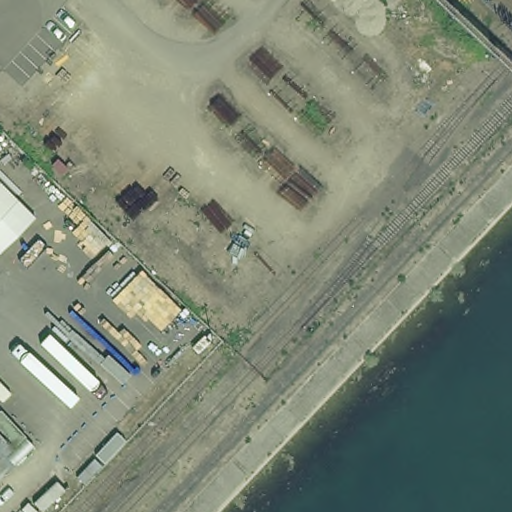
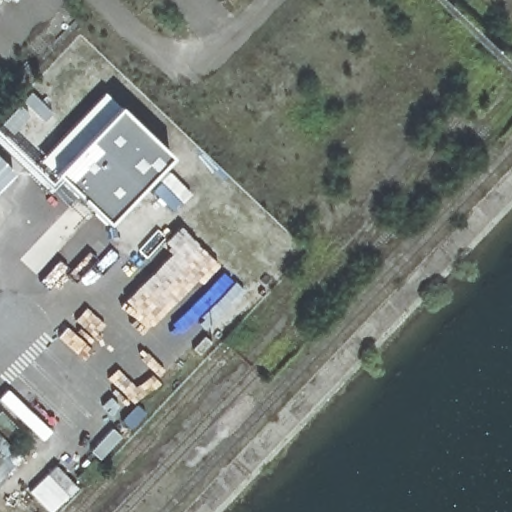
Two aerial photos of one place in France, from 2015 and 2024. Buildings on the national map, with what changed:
new [(102,92),(116,107),(118,105),(170,156),(106,224),(52,174),(50,177),(37,161),(102,92)]
demolished [(0,185),(31,217),(0,248),(0,185)]
new [(34,446),(0,478),(0,411),(1,411),(34,446)]

